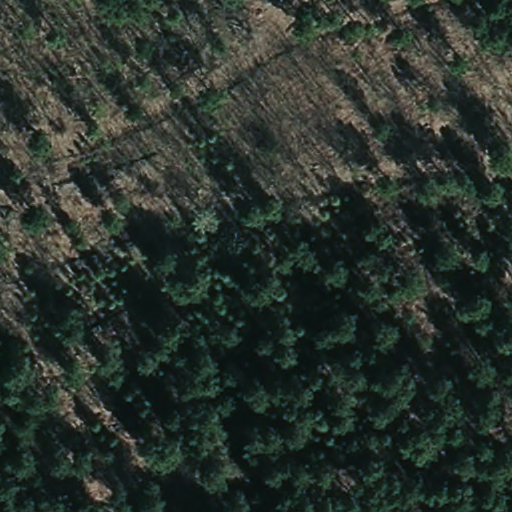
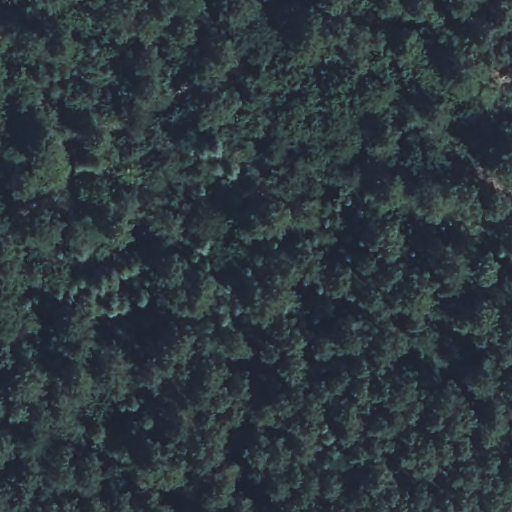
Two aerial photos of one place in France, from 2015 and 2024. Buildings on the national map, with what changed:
[]

